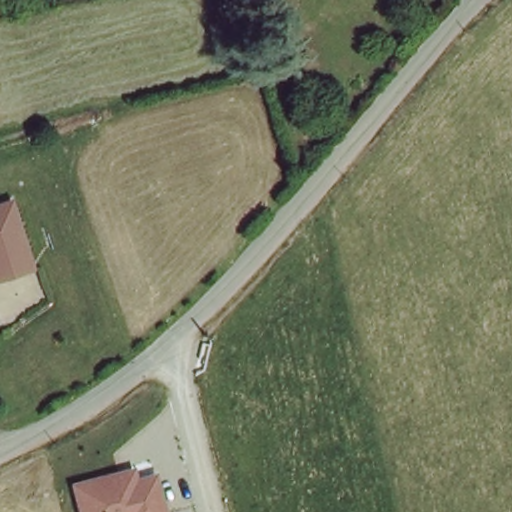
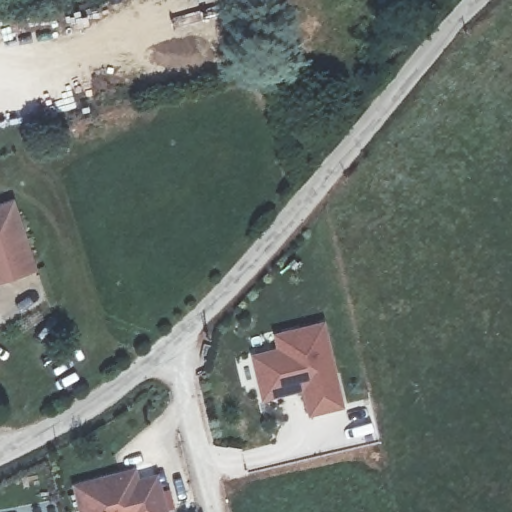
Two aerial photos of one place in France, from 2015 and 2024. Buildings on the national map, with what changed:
unchanged [(0,281),(0,200),(13,196),(34,268),(0,281)]
new [(276,346),(272,331),(324,320),(343,407),(308,416),(303,390),(260,400),(250,353),(276,346)]
unchanged [(137,477),(157,471),(168,512),(78,512),(71,485),(134,467),(137,477)]

